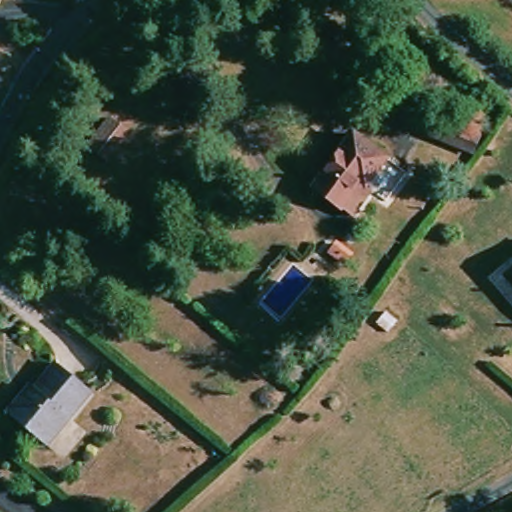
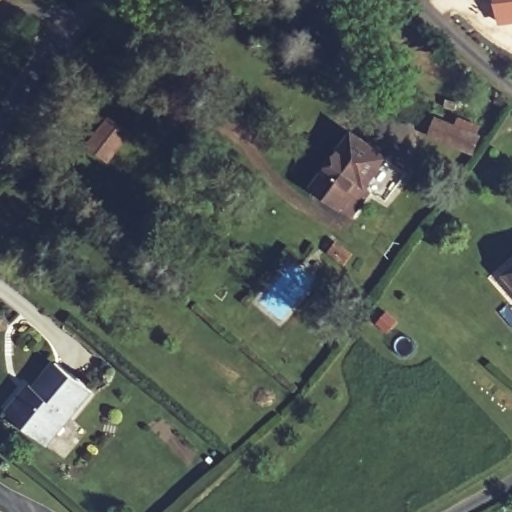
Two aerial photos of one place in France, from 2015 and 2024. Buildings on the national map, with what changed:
new [(495,0),(512,0),(512,24),(498,25),(495,0)]
unchanged [(108,161),(88,146),(110,118),(130,134),(108,161)]
unchanged [(472,153),(430,136),(437,118),(480,135),(472,153)]
unchanged [(402,174),(381,202),(365,190),(347,216),(309,188),(349,134),(402,174)]
unchanged [(343,263),(330,253),(337,244),(350,254),(343,263)]
unchanged [(512,269),(512,285),(504,276),(512,269)]
unchanged [(46,445),(8,414),(32,386),(35,389),(57,363),(90,391),(46,445)]

